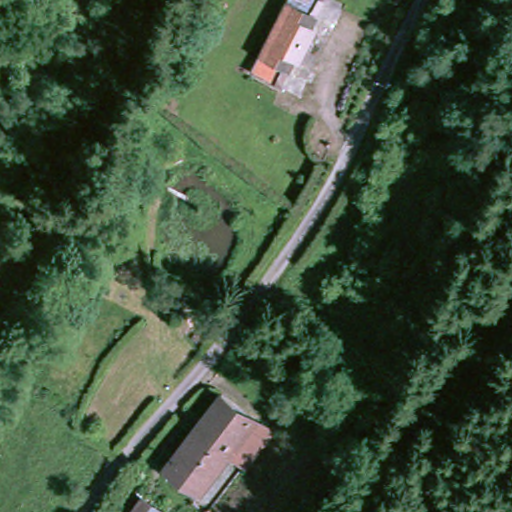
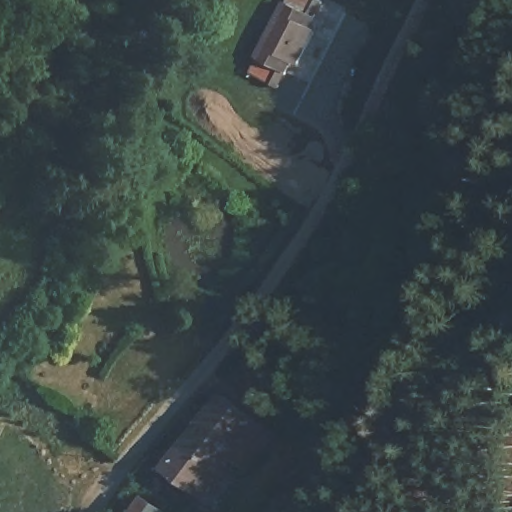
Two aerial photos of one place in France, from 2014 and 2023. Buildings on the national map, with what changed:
unchanged [(248,74),(286,0),(319,0),(306,25),(314,29),(295,65),(286,64),(274,87),(248,74)]
unchanged [(205,496),(169,471),(219,402),(251,424),(205,496)]
unchanged [(136,512),(135,511),(144,497),(161,512),(136,512)]

